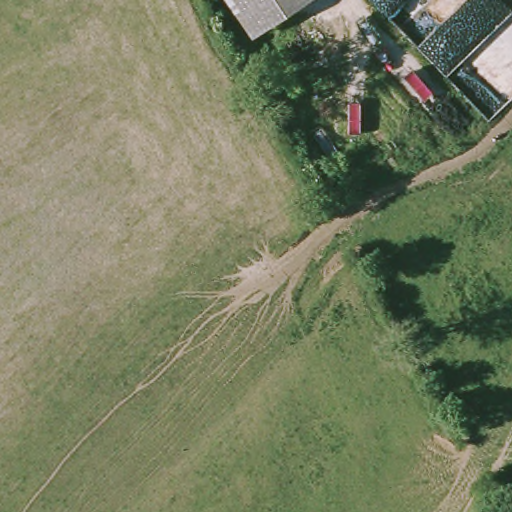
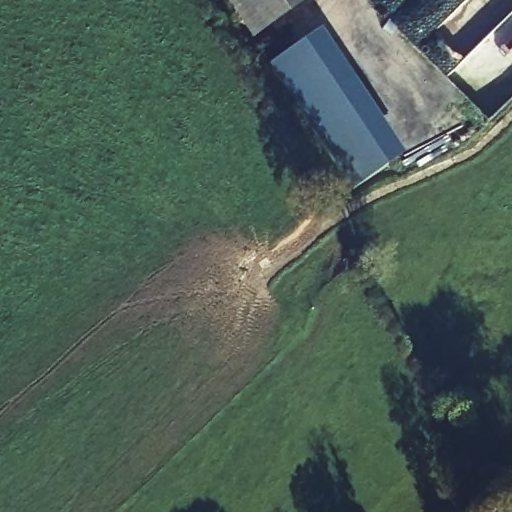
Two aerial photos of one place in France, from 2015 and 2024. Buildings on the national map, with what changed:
unchanged [(229,0),(258,0),(240,15),(229,0)]
unchanged [(312,0),(259,41),(240,15),(258,0),(312,0)]
new [(270,65),(319,30),(406,154),(356,188),(270,65)]

